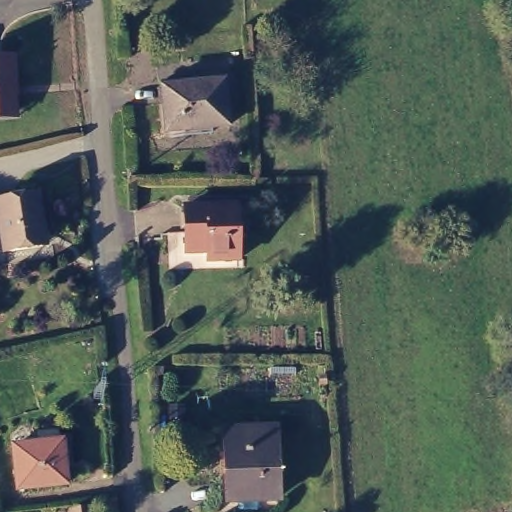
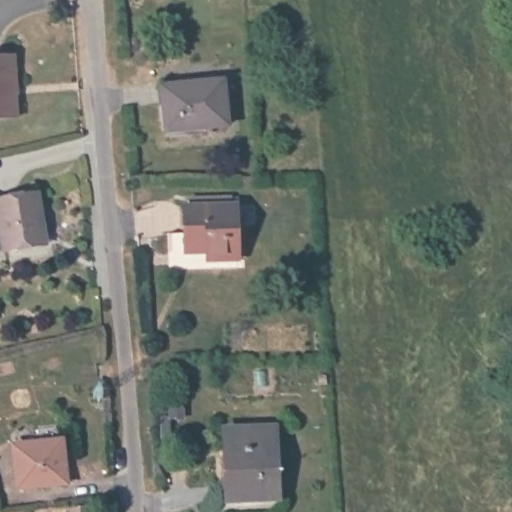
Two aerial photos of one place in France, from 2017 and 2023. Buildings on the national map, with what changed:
unchanged [(17,56),(22,112),(23,118),(0,120),(0,58),(17,56)]
unchanged [(189,130),(189,125),(172,127),(168,83),(229,77),(233,121),(216,123),(217,128),(189,130)]
unchanged [(0,214),(0,191),(38,184),(41,206),(37,207),(42,237),(5,243),(0,214)]
unchanged [(191,194),(231,193),(232,202),(237,202),(238,255),(218,255),(218,248),(186,249),(185,203),(191,203),(191,194)]
unchanged [(231,422),(280,420),(283,489),(240,491),(233,491),(232,461),(231,422)]
unchanged [(38,439),(36,425),(61,423),(62,437),(67,479),(18,484),(14,442),(38,439)]
unchanged [(89,508),(89,512),(71,512),(71,511),(89,508)]

